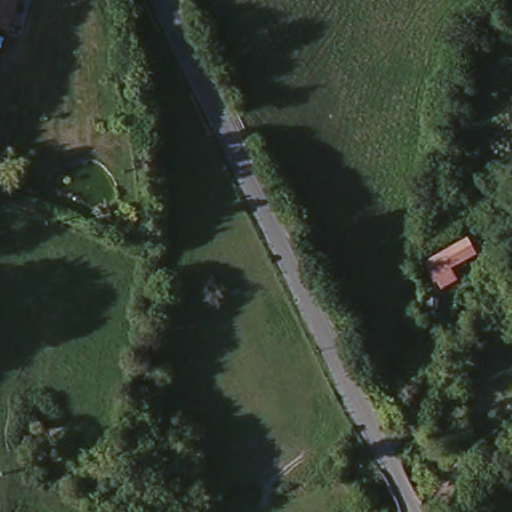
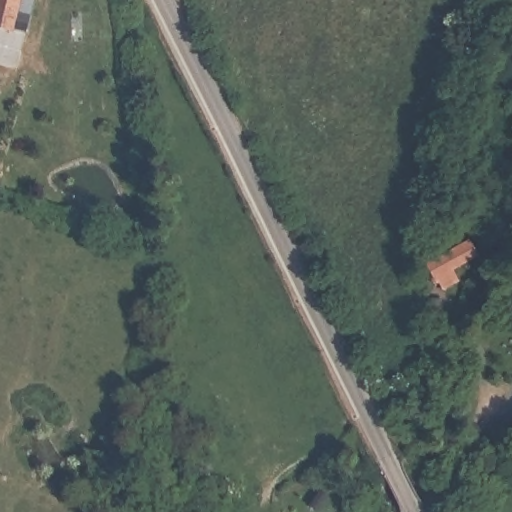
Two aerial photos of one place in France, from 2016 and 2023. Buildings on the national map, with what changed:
unchanged [(0,31),(0,0),(21,0),(13,35),(0,31)]
unchanged [(470,233),(483,257),(432,282),(422,261),(470,233)]

